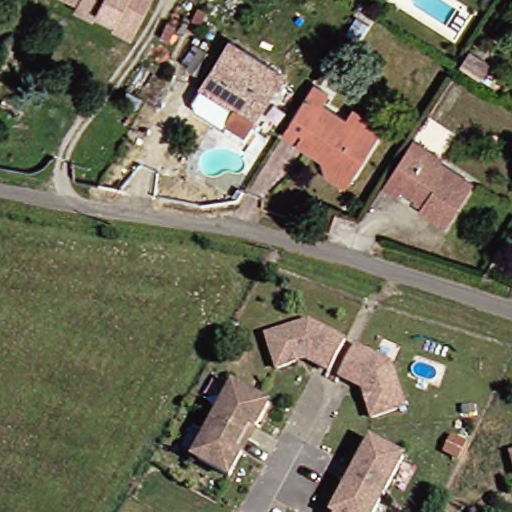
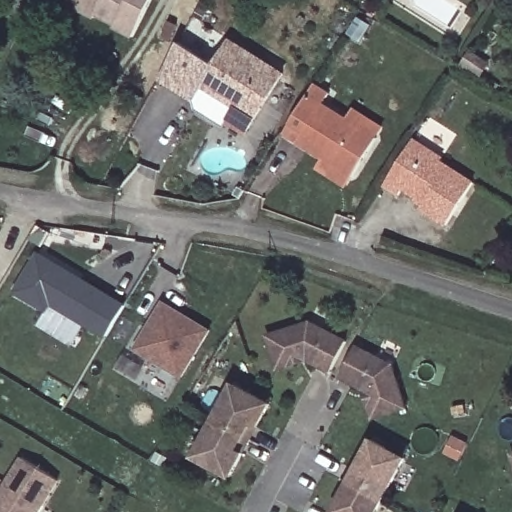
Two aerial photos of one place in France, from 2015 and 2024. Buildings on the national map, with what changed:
unchanged [(75,8),(79,2),(74,0),(151,0),(133,37),(113,27),(94,18),(83,12),(75,8)]
unchanged [(273,73),(234,135),(216,124),(225,108),(193,87),(221,41),(273,73)]
unchanged [(489,65),(481,78),(462,66),(469,53),(489,65)]
unchanged [(322,175),(328,165),(293,143),(279,134),(285,123),(309,84),(324,94),(319,104),(342,119),(348,109),(379,128),(373,139),(348,178),(342,188),(322,175)]
unchanged [(442,225),(416,209),(419,203),(398,189),(394,195),(379,186),(395,161),(409,140),(423,149),(437,158),(434,161),(469,183),(442,225)]
new [(38,254),(124,306),(106,336),(50,303),(46,310),(15,291),(38,254)]
new [(163,302),(209,330),(180,377),(134,349),(163,302)]
unchanged [(273,364),(263,332),(305,317),(342,336),(325,367),(304,355),(293,358),(273,364)]
unchanged [(339,377),(356,346),(393,365),(406,408),(374,419),(367,399),(363,388),(339,377)]
unchanged [(225,472),(189,452),(229,380),(265,399),(253,422),(238,450),(225,472)]
unchanged [(330,495),(339,479),(344,482),(351,470),(346,467),(354,453),(363,436),(396,454),(364,512),(328,512),(323,509),(330,495)]
unchanged [(508,450),(512,449),(512,463),(508,450)]
new [(58,480),(38,512),(0,512),(0,494),(23,458),(58,480)]

